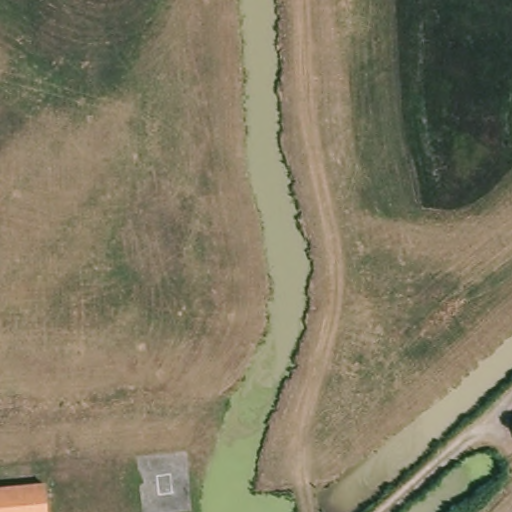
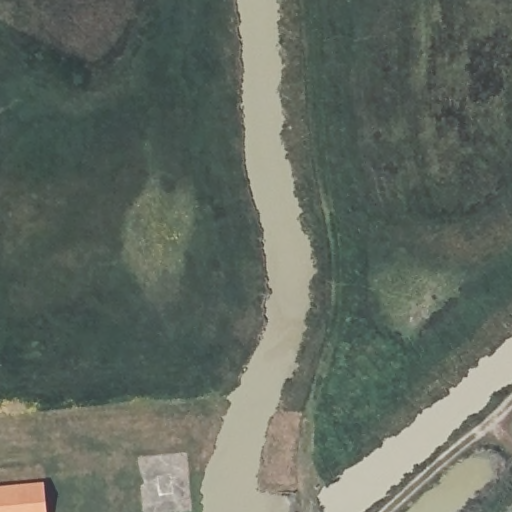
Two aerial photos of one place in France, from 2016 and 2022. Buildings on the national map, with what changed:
unchanged [(47,480),(50,512),(0,512),(0,488),(47,480)]

